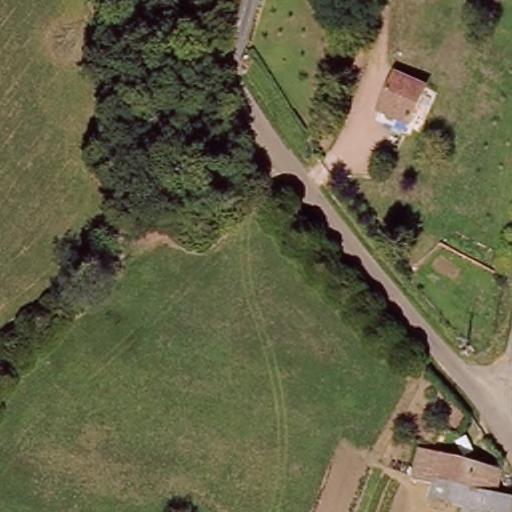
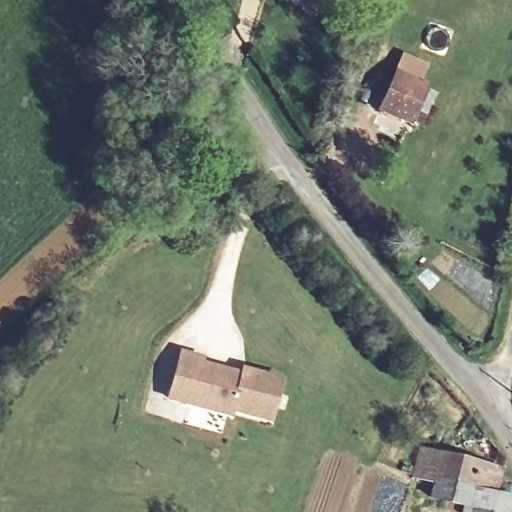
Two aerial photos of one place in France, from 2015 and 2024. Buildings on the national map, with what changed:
unchanged [(410,124),(379,105),(400,70),(431,89),(410,124)]
new [(286,378),(274,423),(235,412),(234,418),(168,400),(182,350),(206,356),(204,362),(242,371),(243,366),(286,378)]
unchanged [(432,450),(488,465),(492,452),(512,459),(512,466),(510,472),(506,495),(434,478),(425,477),(432,450)]
unchanged [(433,495),(434,478),(506,495),(512,497),(512,512),(468,512),(469,504),(433,495)]

